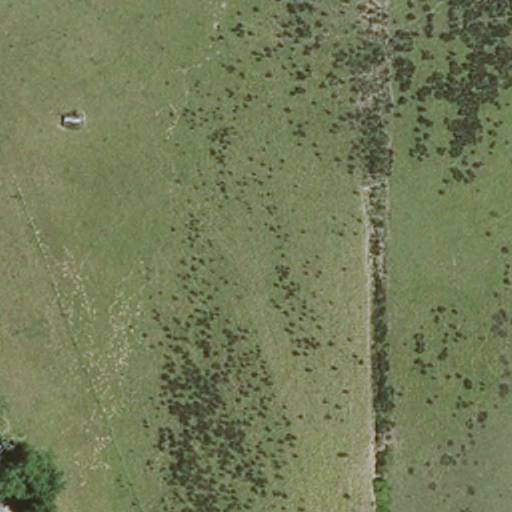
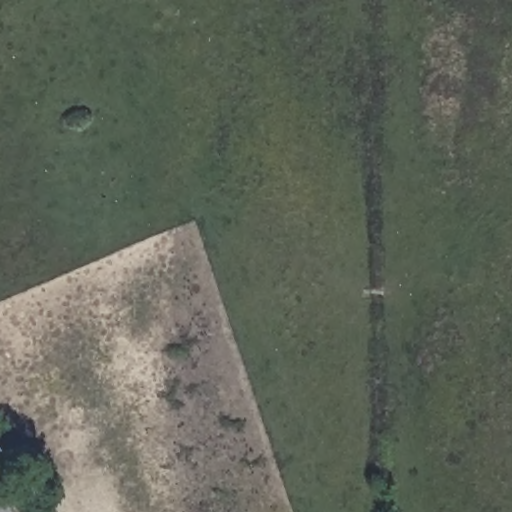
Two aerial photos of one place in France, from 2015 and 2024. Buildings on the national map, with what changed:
[]

